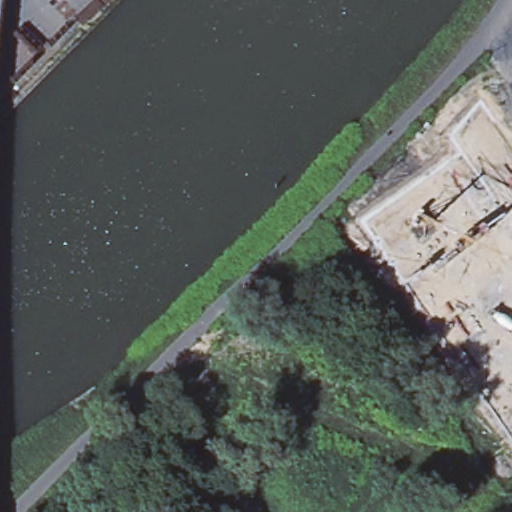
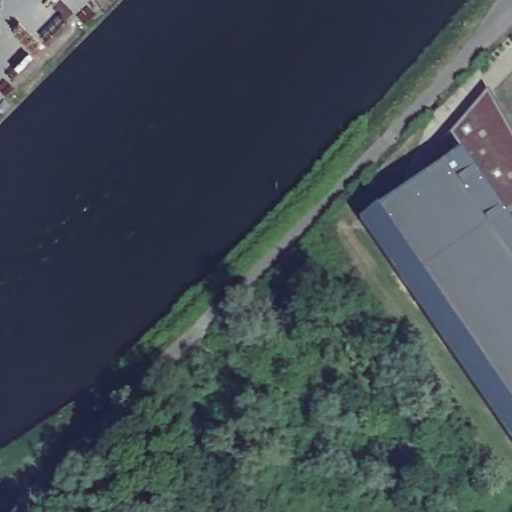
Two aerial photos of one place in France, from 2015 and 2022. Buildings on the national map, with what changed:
new [(512,135),(512,439),(361,220),(380,208),(452,133),(488,91),(512,135)]

